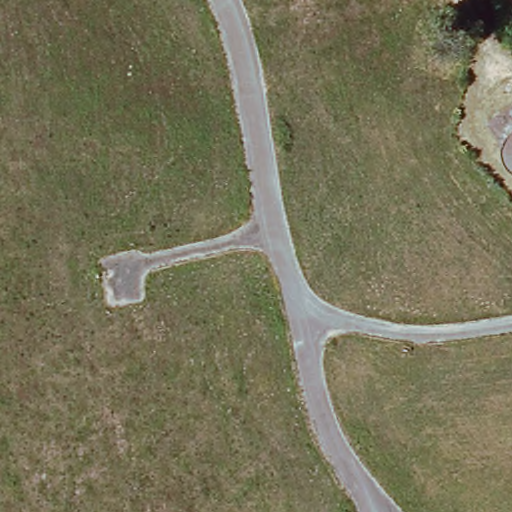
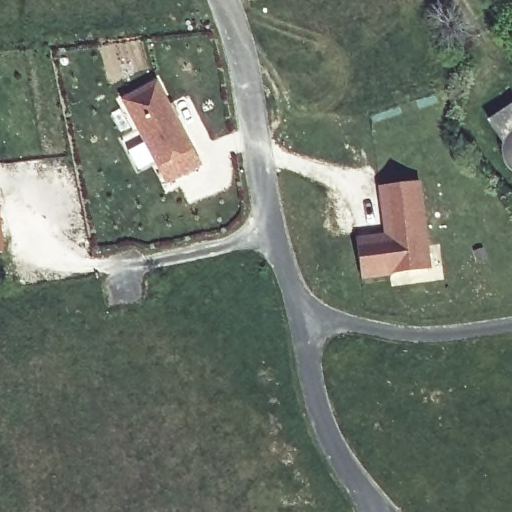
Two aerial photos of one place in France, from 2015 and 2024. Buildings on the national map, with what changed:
new [(167,184),(122,100),(156,81),(202,165),(167,184)]
new [(7,252),(0,253),(0,167),(7,252)]
new [(432,268),(362,280),(356,237),(385,233),(379,187),(420,181),(432,268)]

